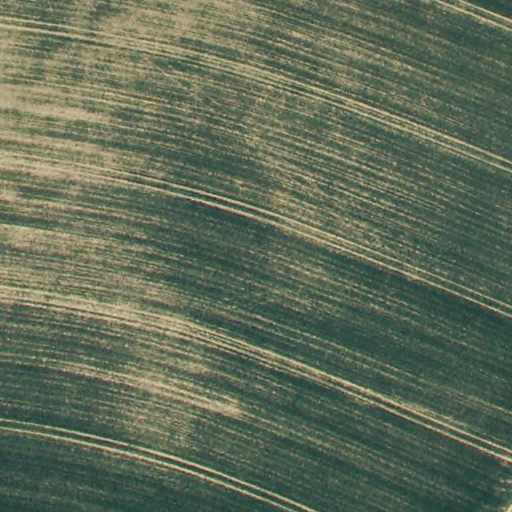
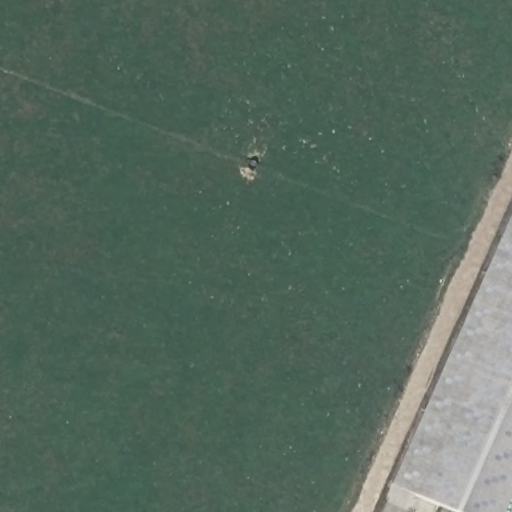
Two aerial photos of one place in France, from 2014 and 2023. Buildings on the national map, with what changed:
new [(506,512),(454,512),(392,484),(512,213),(512,499),(506,512)]

